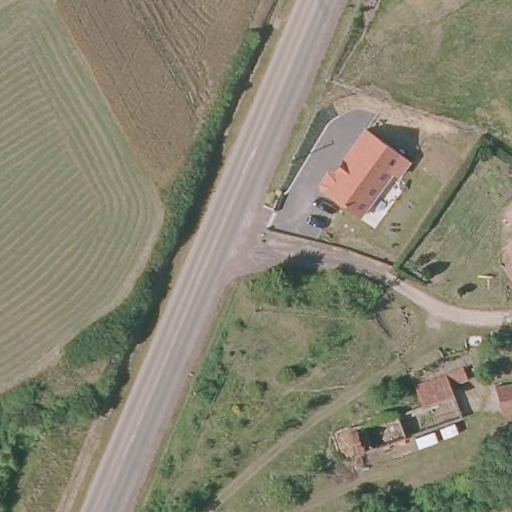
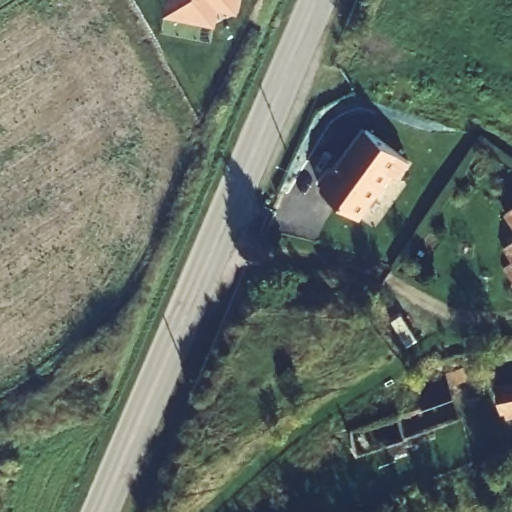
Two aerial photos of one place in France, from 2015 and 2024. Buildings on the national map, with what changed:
new [(220,10),(216,25),(164,15),(167,0),(241,0),(239,12),(220,10)]
unchanged [(365,128),(410,162),(400,179),(394,174),(360,218),(323,189),(320,193),(319,185),(327,170),(335,170),(365,128)]
unchanged [(512,201),(512,222),(502,208),(512,201)]
unchanged [(510,264),(501,245),(512,236),(512,283),(502,270),(510,264)]
unchanged [(465,378),(448,383),(450,394),(420,404),(413,382),(460,366),(465,378)]
unchanged [(503,412),(499,412),(495,388),(512,385),(512,418),(509,418),(503,412)]
unchanged [(345,424),(392,408),(400,432),(351,448),(345,424)]

